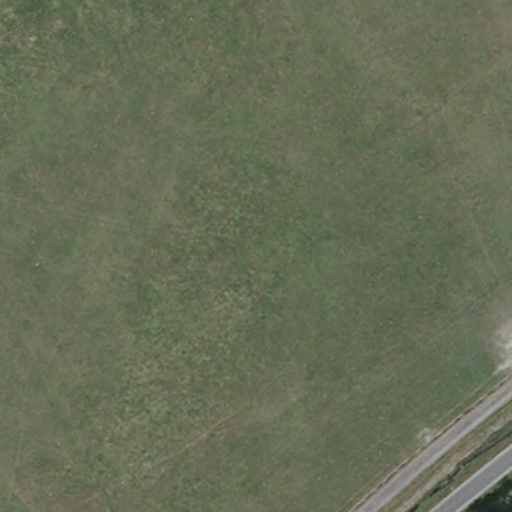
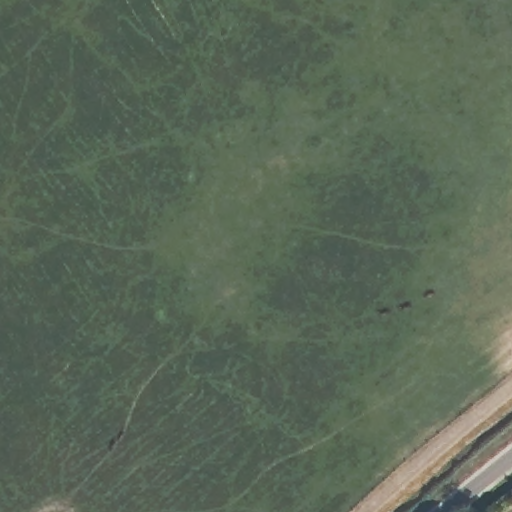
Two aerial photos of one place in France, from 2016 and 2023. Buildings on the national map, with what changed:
[]

